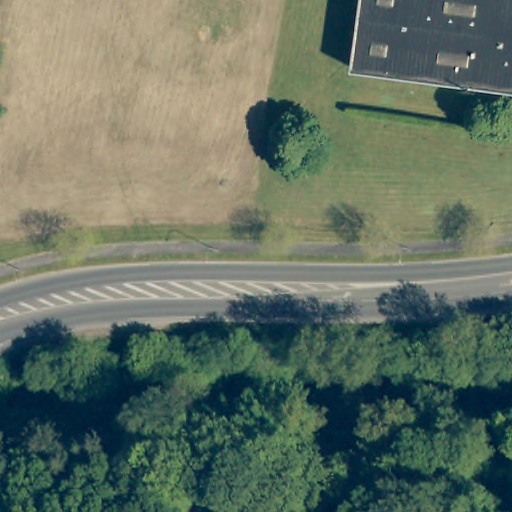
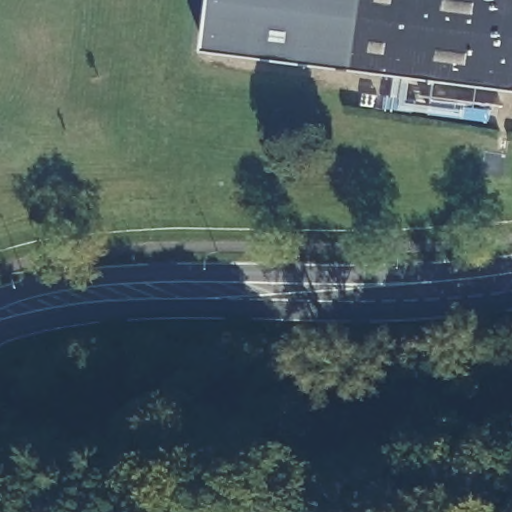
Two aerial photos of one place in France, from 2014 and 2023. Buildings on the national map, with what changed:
new [(206,50),(212,0),(364,0),(355,69),(206,50)]
unchanged [(512,0),(512,88),(355,69),(364,0),(512,0)]

